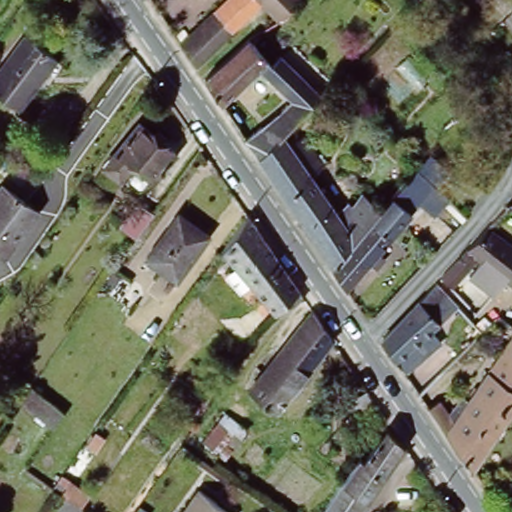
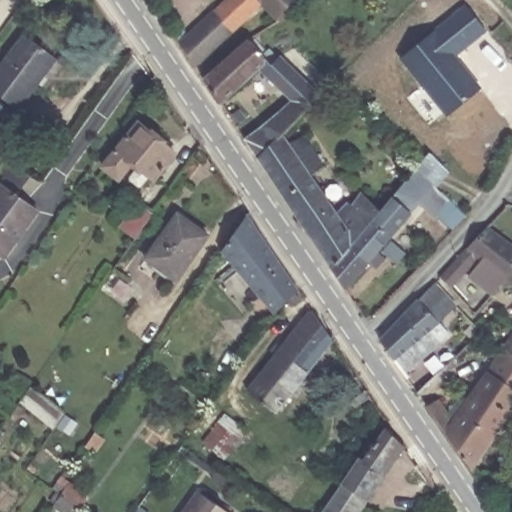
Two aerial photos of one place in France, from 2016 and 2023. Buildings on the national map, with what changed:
unchanged [(232,0),(300,0),(301,2),(277,24),(262,7),(232,36),(217,15),(232,0)]
new [(467,6),(487,30),(455,56),(482,89),(448,116),(402,58),(467,6)]
unchanged [(182,48),(217,15),(232,36),(197,70),(182,48)]
unchanged [(271,40),(279,33),(285,40),(277,47),(271,40)]
unchanged [(0,99),(0,73),(25,40),(57,63),(19,113),(0,99)]
unchanged [(245,143),(290,104),(257,71),(222,107),(204,82),(249,42),(267,64),(274,57),(318,99),(282,136),(258,161),(245,143)]
unchanged [(150,177),(142,187),(138,188),(130,181),(129,177),(137,166),(133,162),(117,180),(103,167),(139,123),(175,155),(154,179),(150,177)]
unchanged [(294,215),(258,161),(282,136),(290,146),(302,137),(322,165),(309,175),(335,214),(344,209),(347,214),(365,199),(380,215),(332,271),(294,215)]
unchanged [(332,271),(380,215),(417,173),(417,172),(436,189),(346,293),(332,271)]
unchanged [(0,257),(0,190),(2,187),(39,214),(5,261),(0,257)]
unchanged [(119,226),(137,203),(153,215),(136,239),(119,226)]
unchanged [(147,263),(179,218),(209,239),(178,285),(147,263)]
unchanged [(300,295),(275,318),(222,256),(249,219),(300,295)]
unchanged [(401,358),(388,338),(387,337),(390,334),(442,280),(450,271),(492,227),(512,241),(512,278),(485,255),(477,265),(489,276),(472,294),(464,302),(460,298),(440,316),(445,321),(401,358)]
unchanged [(329,340),(272,413),(244,391),(307,308),(329,340)]
unchanged [(448,367),(460,382),(447,396),(460,418),(512,342),(512,415),(477,468),(424,391),(448,367)]
unchanged [(65,413),(63,416),(55,428),(21,400),(31,385),(65,413)]
unchanged [(207,445),(228,415),(249,430),(227,460),(207,445)]
unchanged [(367,458),(388,428),(405,446),(360,512),(323,512),(362,454),(367,458)]
unchanged [(75,465),(84,455),(106,472),(98,483),(75,465)]
unchanged [(65,512),(55,504),(62,494),(63,495),(72,483),(90,496),(82,508),(84,509),(81,512),(65,512)]
unchanged [(223,512),(190,512),(200,497),(223,512)]

